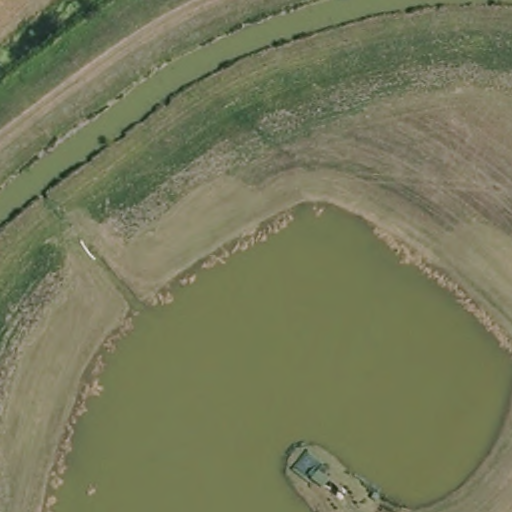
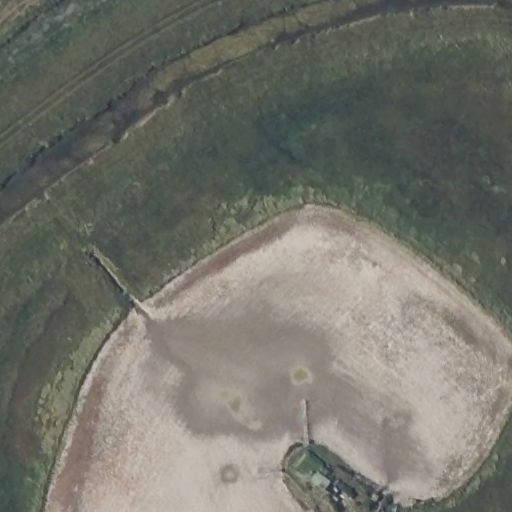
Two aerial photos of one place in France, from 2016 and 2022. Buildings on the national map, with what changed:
unchanged [(290,477),(304,459),(326,471),(309,488),(290,477)]

